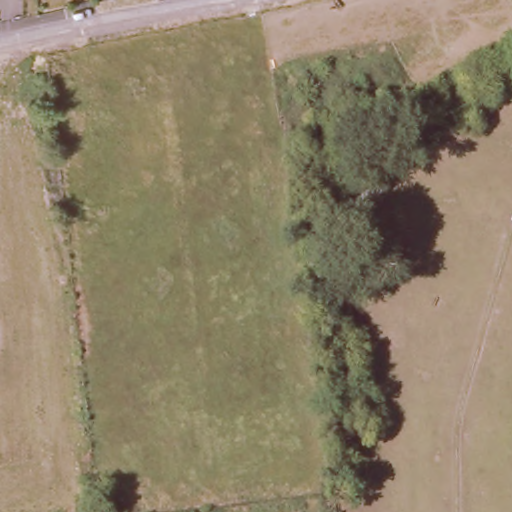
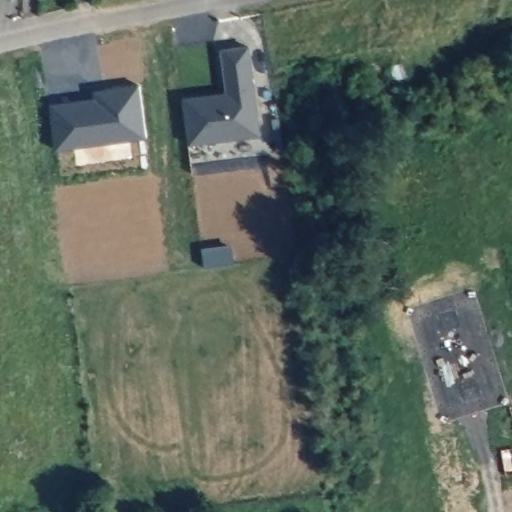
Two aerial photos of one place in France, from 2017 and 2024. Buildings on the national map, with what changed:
new [(190,145),(182,98),(225,92),(220,50),(249,45),(260,136),(190,145)]
new [(55,150),(49,104),(94,98),(93,91),(138,84),(146,139),(55,150)]

